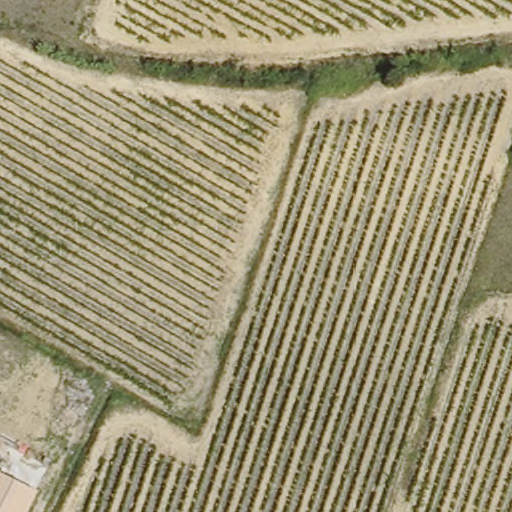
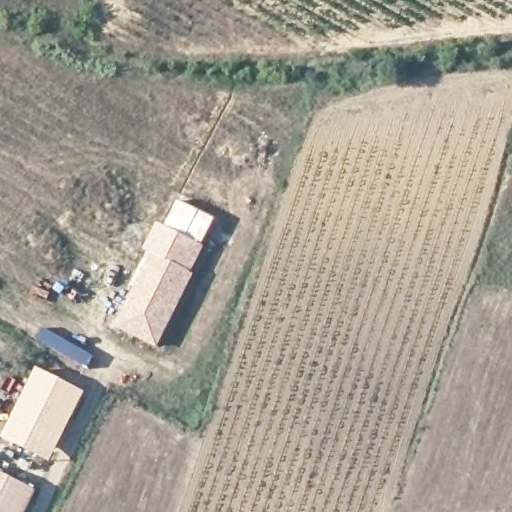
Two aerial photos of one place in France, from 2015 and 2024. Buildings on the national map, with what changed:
new [(178,201),(217,219),(205,246),(165,226),(178,201)]
new [(158,224),(165,226),(205,246),(194,273),(145,254),(158,224)]
new [(130,295),(145,254),(194,273),(196,275),(158,349),(115,328),(130,295)]
new [(38,367),(87,392),(51,463),(0,436),(38,367)]
unchanged [(19,512),(0,512),(0,486),(26,499),(19,512)]

